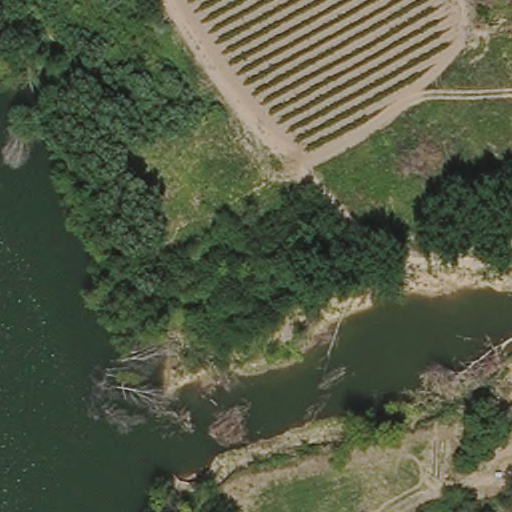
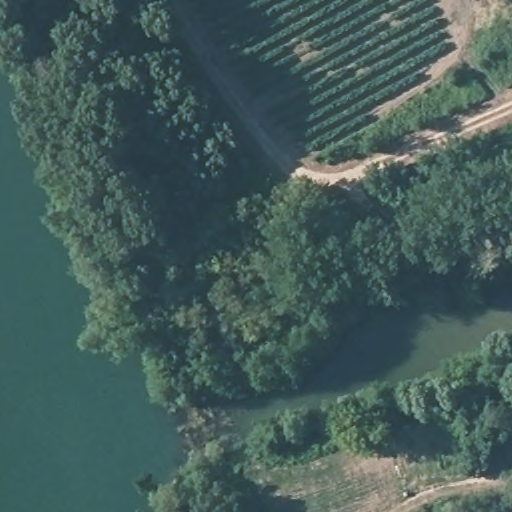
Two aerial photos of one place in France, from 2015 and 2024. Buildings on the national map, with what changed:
unchanged [(286,317),(296,332),(279,342),(269,327),(286,317)]

